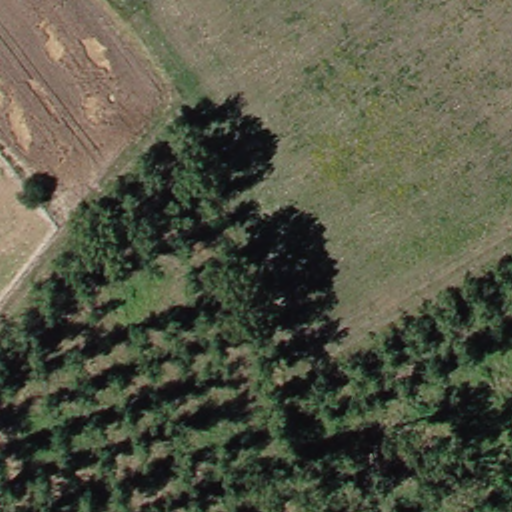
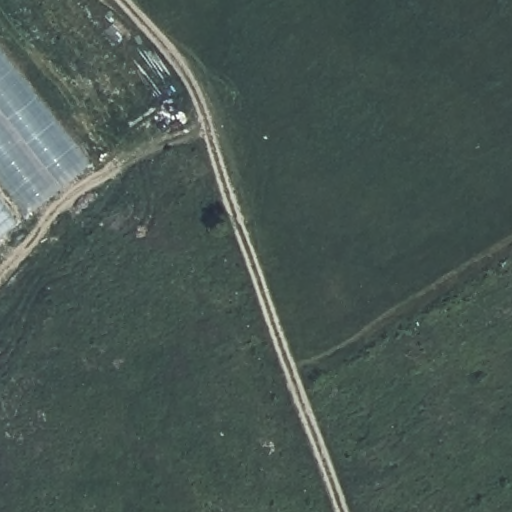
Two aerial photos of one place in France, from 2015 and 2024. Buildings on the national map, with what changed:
new [(0,191),(0,59),(85,167),(19,216),(0,191)]
new [(0,210),(11,225),(0,234),(0,210)]

